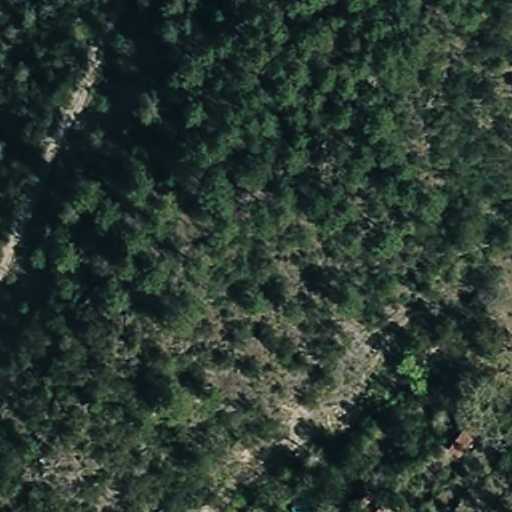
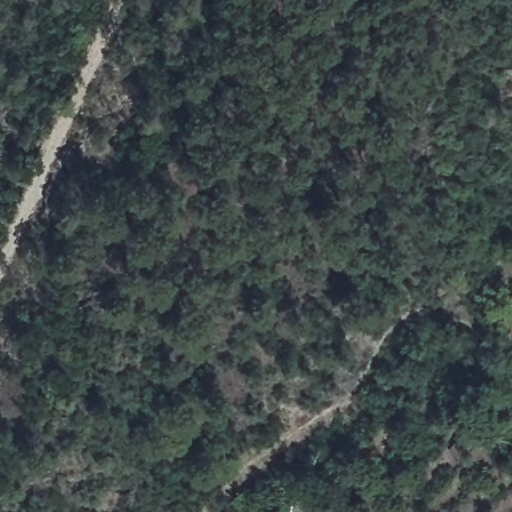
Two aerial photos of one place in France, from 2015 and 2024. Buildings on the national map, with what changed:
unchanged [(383,512),(374,512),(380,507),(383,512)]

